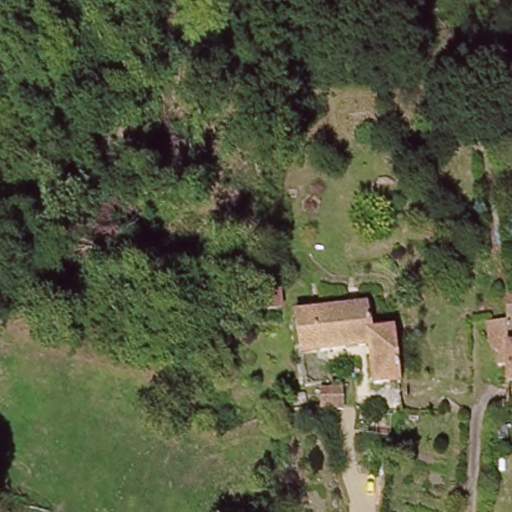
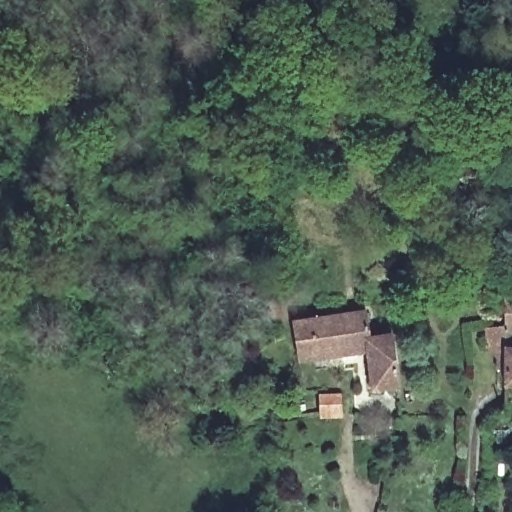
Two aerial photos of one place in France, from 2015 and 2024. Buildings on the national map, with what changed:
unchanged [(375,416),(373,392),(368,353),(320,361),(300,363),(293,323),(314,320),(367,312),(371,340),(393,337),(399,388),(397,388),(397,413),(375,416)]
unchanged [(507,381),(507,368),(497,357),(496,338),(512,337),(512,381),(507,381)]
unchanged [(343,397),(342,417),(321,416),(319,396),(343,397)]

